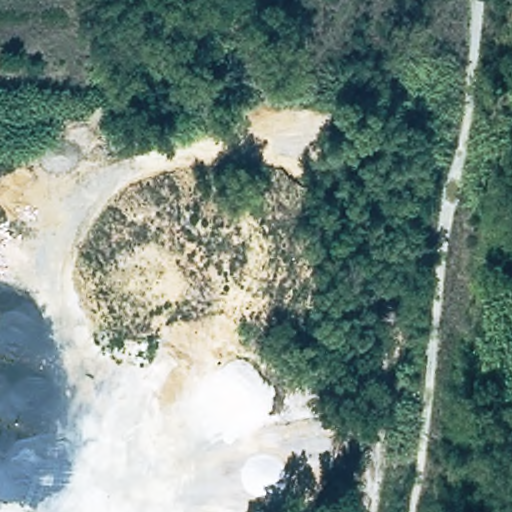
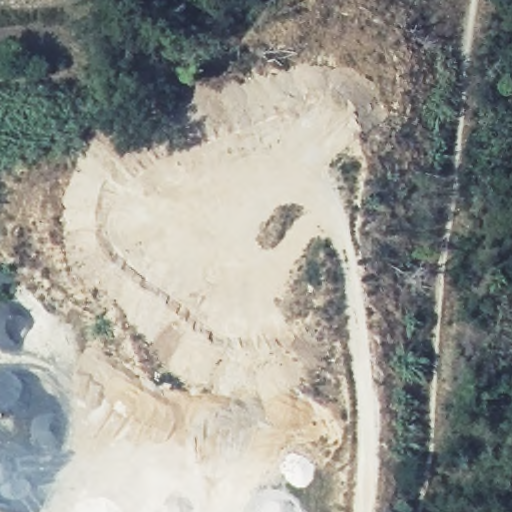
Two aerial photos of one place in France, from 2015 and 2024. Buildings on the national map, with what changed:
[]

